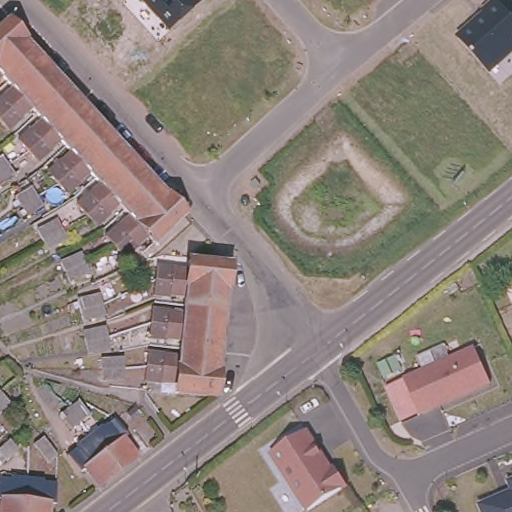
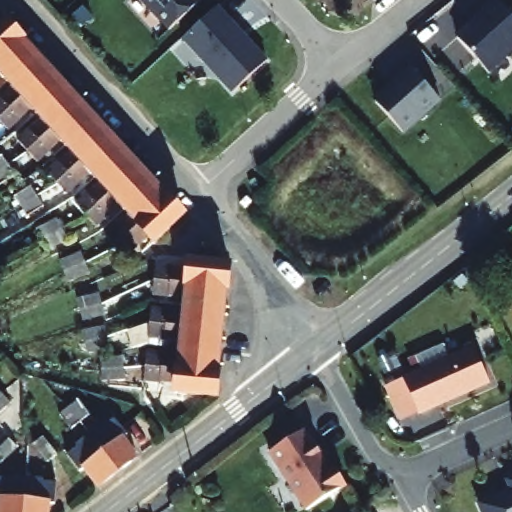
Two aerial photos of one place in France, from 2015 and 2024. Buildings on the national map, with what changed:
unchanged [(139,0),(199,0),(200,0),(166,30),(139,0)]
unchanged [(495,0),(512,18),(512,49),(487,71),(450,33),(485,0),(495,0)]
new [(183,39),(220,6),(269,59),(232,93),(183,39)]
unchanged [(0,60),(0,37),(13,23),(25,37),(0,60)]
unchanged [(25,37),(39,51),(7,80),(5,77),(1,73),(0,74),(0,60),(25,37)]
unchanged [(0,119),(0,101),(14,88),(7,80),(39,51),(55,68),(0,119)]
new [(403,131),(375,101),(398,81),(398,79),(412,67),(440,98),(403,131)]
unchanged [(38,113),(32,106),(8,128),(0,120),(0,119),(55,68),(70,85),(38,113)]
unchanged [(30,152),(20,142),(45,120),(38,114),(38,113),(70,85),(85,101),(30,152)]
unchanged [(63,139),(38,161),(30,153),(30,152),(85,101),(100,118),(68,146),(63,139)]
unchanged [(52,176),(75,154),(72,149),(68,146),(100,118),(115,134),(60,185),(52,176)]
unchanged [(98,179),(93,174),(70,195),(63,189),(60,185),(115,134),(130,151),(98,179)]
unchanged [(2,184),(0,181),(0,151),(1,150),(10,160),(18,170),(2,184)]
unchanged [(89,218),(80,208),(105,186),(104,186),(98,179),(130,151),(145,167),(89,218)]
unchanged [(129,213),(123,206),(100,229),(97,226),(89,218),(145,167),(160,184),(129,213)]
unchanged [(32,216),(24,207),(16,198),(32,184),(40,193),(48,202),(32,216)]
unchanged [(111,242),(133,221),(135,220),(129,213),(160,184),(176,201),(120,251),(111,242)]
unchanged [(176,201),(190,217),(159,245),(152,239),(129,260),(128,260),(120,251),(176,201)]
unchanged [(77,234),(58,250),(52,243),(43,234),(62,217),(70,225),(77,234)]
unchanged [(90,284),(82,276),(75,269),(94,253),(100,259),(107,268),(90,284)]
unchanged [(162,263),(163,263),(193,265),(195,256),(212,258),(235,260),(236,261),(233,282),(161,275),(162,263)]
unchanged [(121,288),(119,278),(117,268),(139,264),(141,274),(143,284),(121,288)]
unchanged [(190,300),(191,291),(190,291),(160,287),(161,275),(233,282),(232,304),(190,300)]
unchanged [(157,313),(157,306),(188,309),(190,300),(232,304),(230,327),(156,319),(157,313)]
unchanged [(115,333),(113,323),(112,313),(135,309),(136,319),(138,329),(115,333)]
unchanged [(230,327),(227,348),(185,344),(185,342),(187,335),(155,332),(156,319),(230,327)]
unchanged [(476,343),(492,379),(420,410),(404,374),(476,343)]
unchanged [(152,351),(184,354),(185,344),(227,348),(225,371),(152,364),(152,351)]
unchanged [(110,378),(108,368),(105,358),(130,353),(132,364),(133,373),(110,378)]
unchanged [(225,371),(222,394),(185,389),(180,389),(181,380),(150,376),(152,364),(225,371)]
unchanged [(0,411),(0,386),(3,390),(12,400),(0,411)]
unchanged [(59,411),(68,404),(79,396),(92,412),(81,420),(72,428),(59,411)]
unchanged [(103,421),(106,423),(116,416),(130,434),(124,438),(128,443),(137,455),(119,469),(90,431),(103,421)]
unchanged [(306,425),(332,465),(335,462),(347,481),(307,505),(271,447),(306,425)]
unchanged [(100,484),(87,467),(82,470),(75,462),(69,452),(77,446),(75,443),(90,431),(119,469),(100,484)]
unchanged [(24,458),(6,473),(0,467),(0,463),(15,448),(24,458)]
unchanged [(60,469),(50,476),(35,458),(45,450),(60,469)]
unchanged [(512,471),(512,482),(508,473),(512,471)]
unchanged [(1,502),(0,502),(0,482),(9,482),(10,477),(26,478),(23,512),(0,512),(1,502)]
unchanged [(43,480),(43,486),(55,487),(53,507),(48,506),(48,512),(23,512),(26,478),(43,480)]
unchanged [(479,495),(512,482),(512,512),(486,512),(479,495)]

